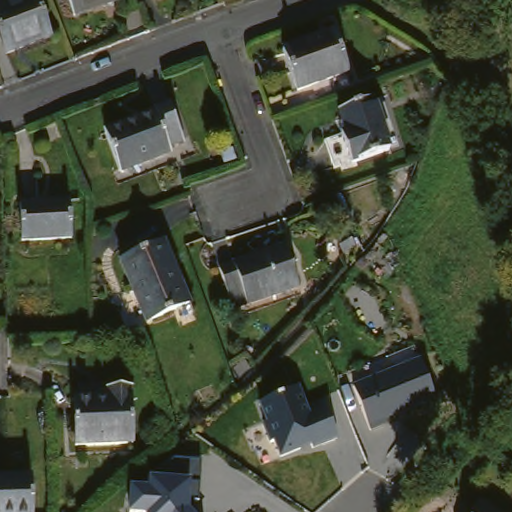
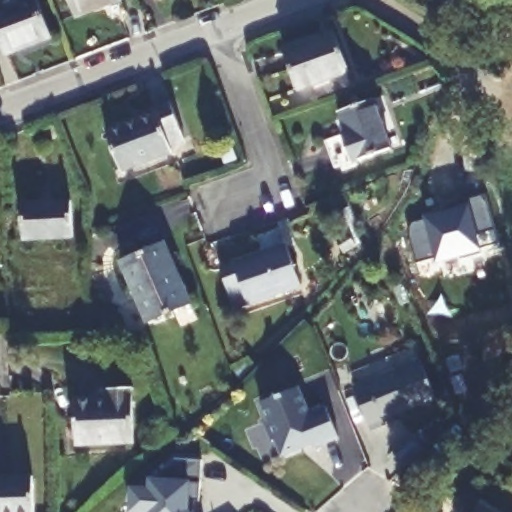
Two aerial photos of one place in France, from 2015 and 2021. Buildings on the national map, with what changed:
unchanged [(66,0),(120,0),(120,1),(72,18),(66,0)]
unchanged [(10,56),(0,26),(0,15),(40,1),(54,41),(10,56)]
unchanged [(292,93),(280,49),(333,34),(346,77),(292,93)]
unchanged [(331,139),(348,134),(348,133),(354,131),(348,110),(385,101),(398,151),(357,161),(355,162),(355,161),(338,166),(331,139)]
unchanged [(156,119),(154,111),(171,105),(185,145),(170,150),(171,155),(153,162),(140,125),(156,119)]
unchanged [(116,174),(104,138),(140,125),(153,162),(116,174)]
new [(412,220),(427,216),(426,211),(451,204),(450,202),(485,192),(498,243),(477,248),(479,253),(460,258),(458,253),(436,259),(435,256),(415,262),(406,229),(412,220)]
unchanged [(16,238),(19,203),(70,206),(69,241),(16,238)]
unchanged [(185,308),(140,323),(117,257),(161,242),(185,308)]
unchanged [(231,307),(219,270),(285,249),(297,286),(231,307)]
unchanged [(353,387),(421,360),(437,401),(385,421),(387,426),(370,432),(353,387)]
unchanged [(302,384),(311,409),(327,404),(338,438),(280,457),(261,400),(302,384)]
unchanged [(77,448),(76,404),(110,404),(110,391),(134,391),(134,448),(77,448)]
unchanged [(204,461),(202,496),(193,496),(193,512),(129,512),(130,486),(148,486),(150,479),(176,459),(204,461)]
unchanged [(29,475),(31,512),(0,512),(0,476),(29,475)]
unchanged [(477,509),(482,512),(475,512),(477,509)]

